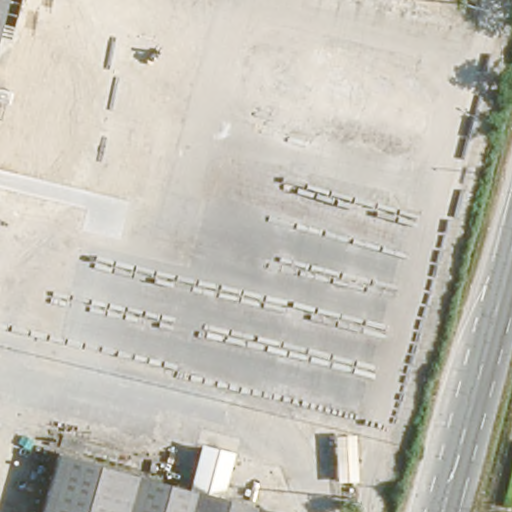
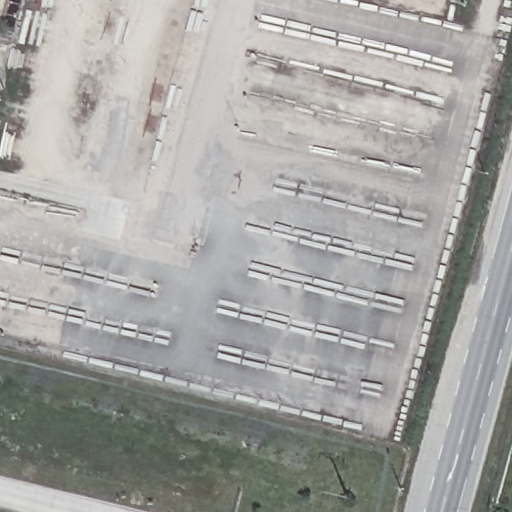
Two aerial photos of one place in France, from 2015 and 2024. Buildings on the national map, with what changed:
unchanged [(0,23),(0,0),(6,0),(0,23)]
demolished [(192,457),(194,447),(207,451),(204,460),(200,480),(187,477),(192,457)]
demolished [(272,512),(45,512),(63,451),(272,512)]

